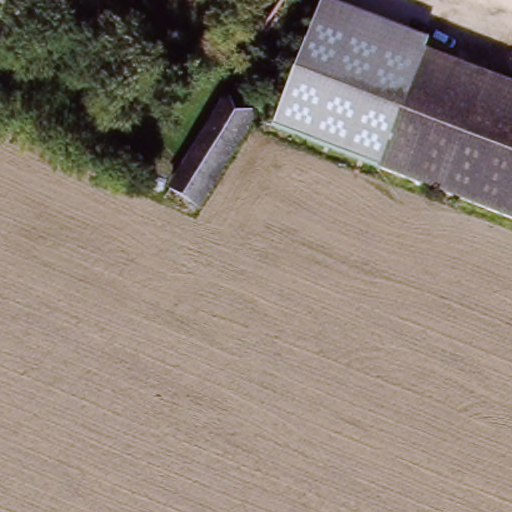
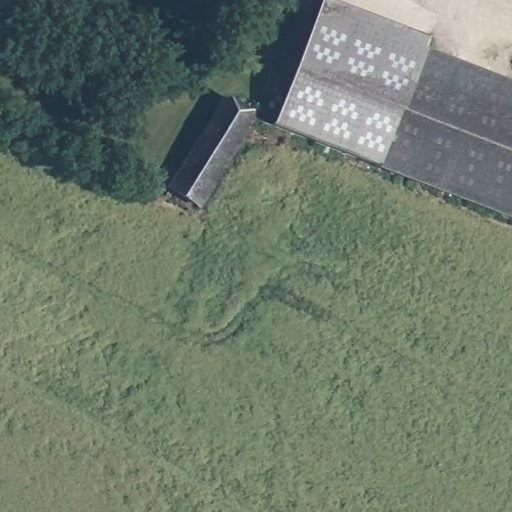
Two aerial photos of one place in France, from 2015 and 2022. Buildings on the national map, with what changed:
unchanged [(512,82),(512,197),(278,126),(310,20),(512,82)]
unchanged [(158,206),(227,89),(252,105),(180,218),(158,206)]

